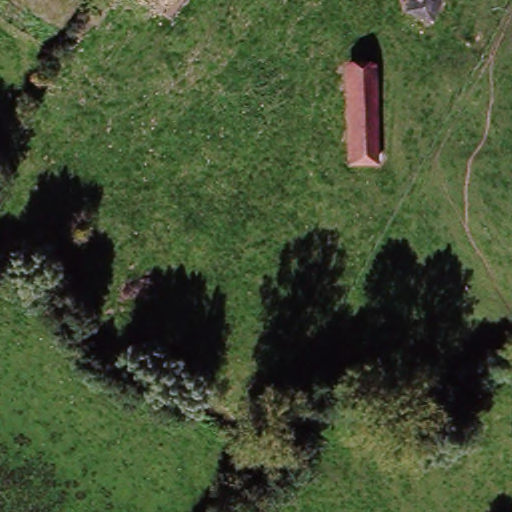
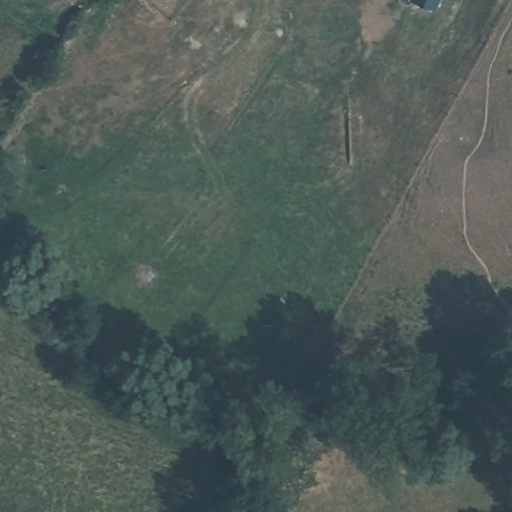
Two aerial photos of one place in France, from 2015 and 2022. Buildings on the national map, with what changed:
unchanged [(405,0),(434,0),(424,24),(400,14),(405,0)]
demolished [(352,164),(350,64),(377,64),(378,128),(378,163),(352,164)]

